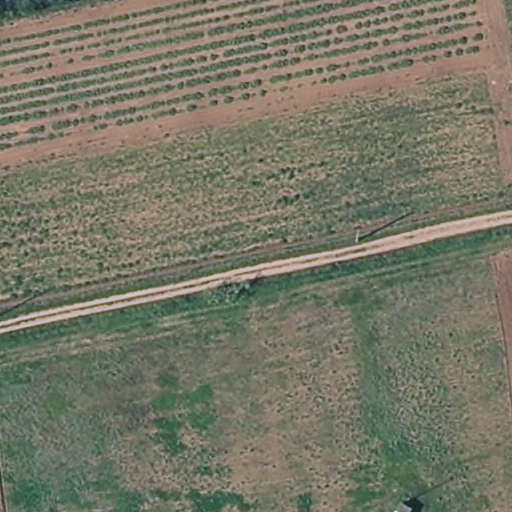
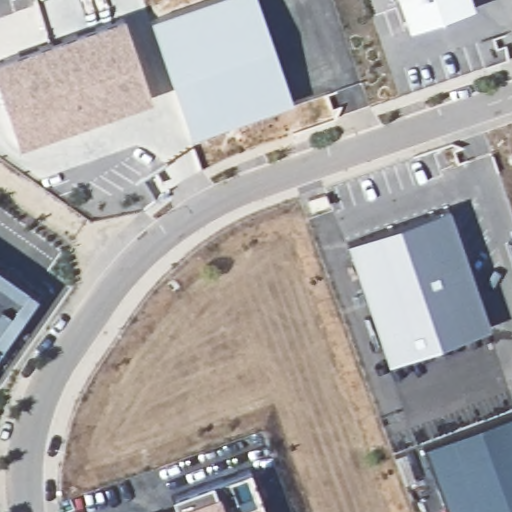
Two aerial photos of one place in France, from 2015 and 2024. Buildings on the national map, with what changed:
new [(191,136),(151,18),(203,0),(258,0),(293,101),(191,136)]
new [(398,0),(472,0),(474,7),(408,31),(398,0)]
new [(18,146),(0,93),(0,58),(123,15),(151,100),(18,146)]
new [(388,362),(347,242),(449,207),(491,327),(388,362)]
new [(0,349),(0,270),(36,296),(0,349)]
new [(512,412),(512,512),(447,512),(423,445),(512,412)]
new [(171,496),(248,467),(265,512),(175,512),(176,512),(171,496)]

